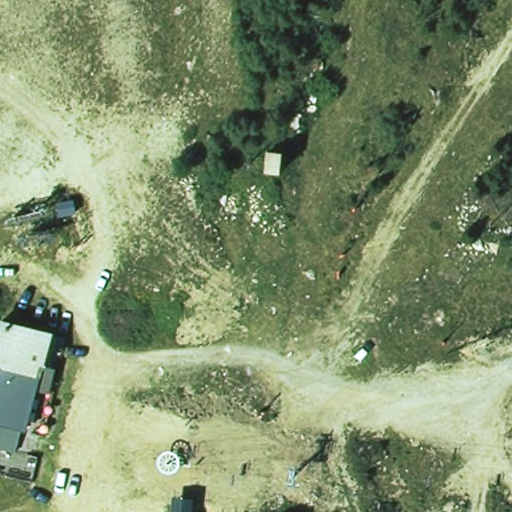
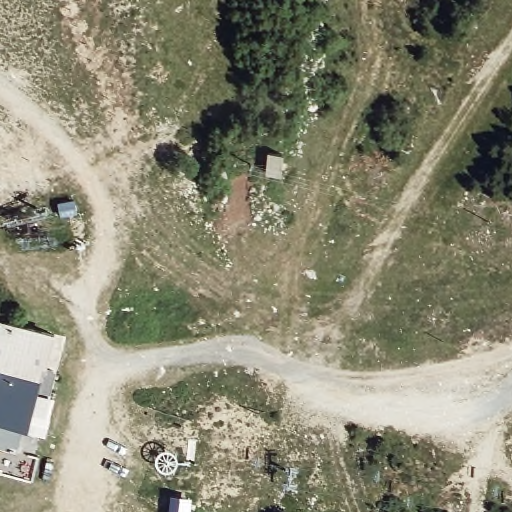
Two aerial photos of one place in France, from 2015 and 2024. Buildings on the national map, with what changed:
unchanged [(4,313),(59,327),(45,378),(27,449),(0,442),(0,325),(4,313)]
unchanged [(198,501),(198,512),(173,512),(174,501),(198,501)]

